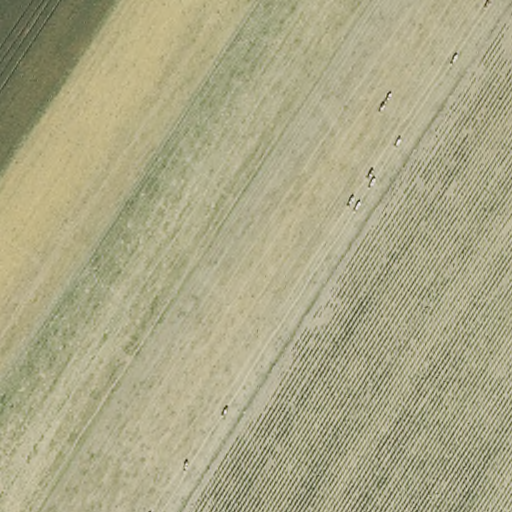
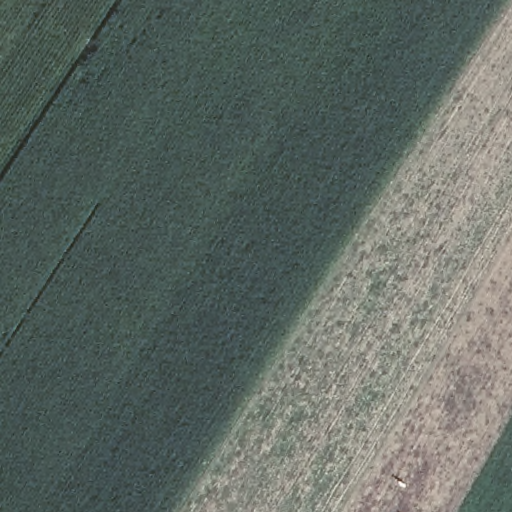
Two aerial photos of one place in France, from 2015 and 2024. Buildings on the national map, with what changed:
[]

